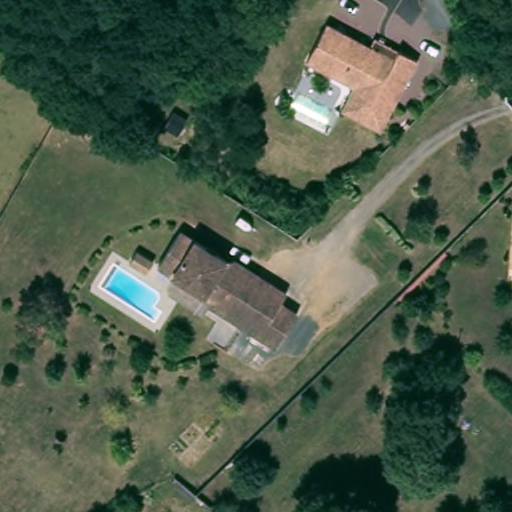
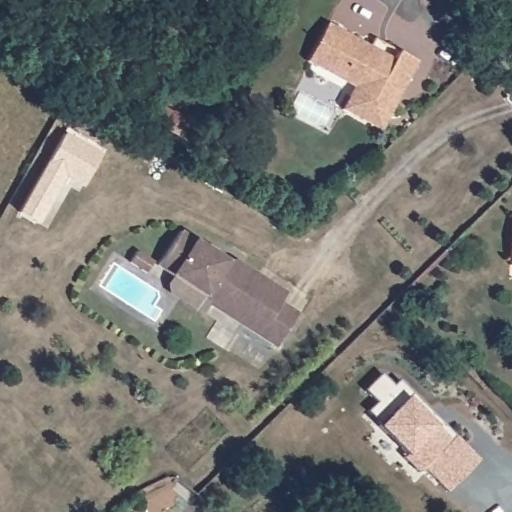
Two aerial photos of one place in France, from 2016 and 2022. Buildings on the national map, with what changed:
unchanged [(350,82),(304,61),(324,21),(392,54),(400,46),(417,58),(379,128),(341,110),(350,82)]
new [(17,212),(64,133),(101,154),(84,184),(61,172),(34,222),(17,212)]
unchanged [(282,345),(265,334),(215,302),(213,301),(212,294),(167,266),(159,261),(181,226),(234,260),(241,258),(292,291),(287,300),(304,311),(282,345)]
unchanged [(147,269),(130,258),(138,247),(154,257),(147,269)]
unchanged [(212,294),(213,301),(215,302),(208,313),(158,280),(167,266),(212,294)]
new [(480,459),(446,491),(422,467),(416,472),(401,458),(406,454),(378,425),(380,423),(369,411),(378,403),(366,390),(381,374),(395,387),(400,382),(454,436),(456,435),(480,459)]

